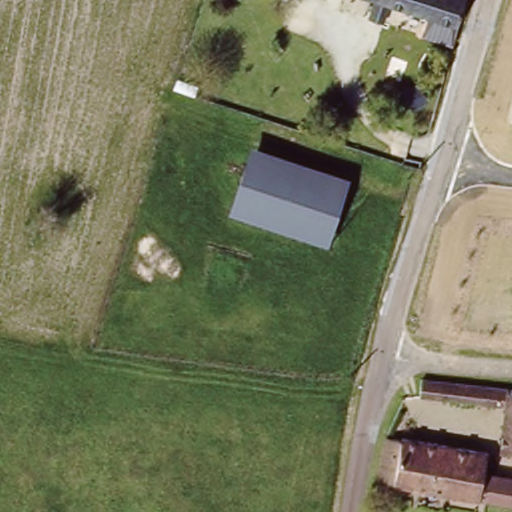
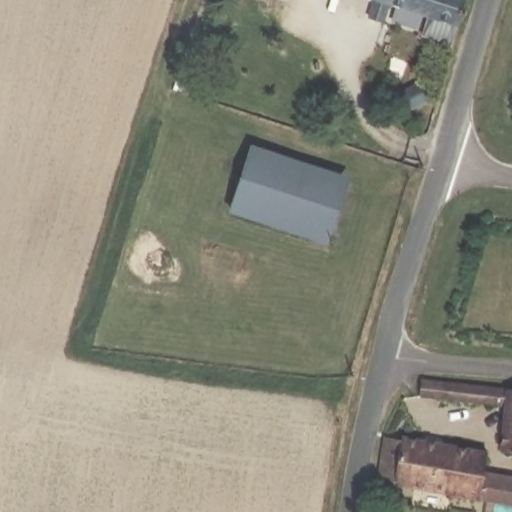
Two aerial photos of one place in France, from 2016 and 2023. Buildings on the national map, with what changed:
unchanged [(458,23),(388,0),(465,0),(458,23)]
unchanged [(252,152),(276,160),(261,207),(237,200),(252,152)]
unchanged [(276,160),(348,183),(332,230),(261,207),(276,160)]
unchanged [(503,408),(436,399),(417,397),(420,379),(438,381),(512,390),(512,451),(498,450),(503,408)]
unchanged [(383,443),(403,447),(404,444),(488,460),(485,476),(480,502),(379,484),(383,443)]
unchanged [(512,481),(512,508),(480,502),(485,476),(512,481)]

